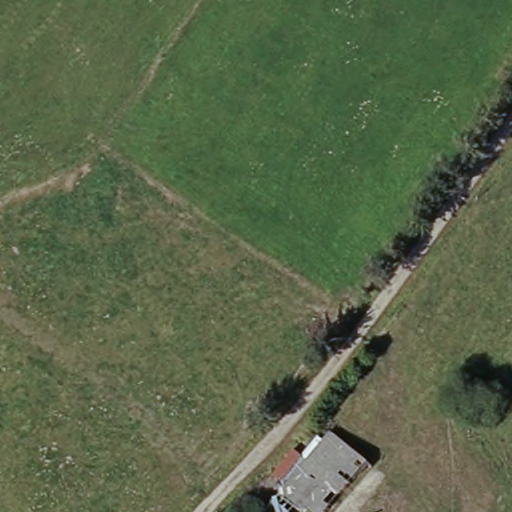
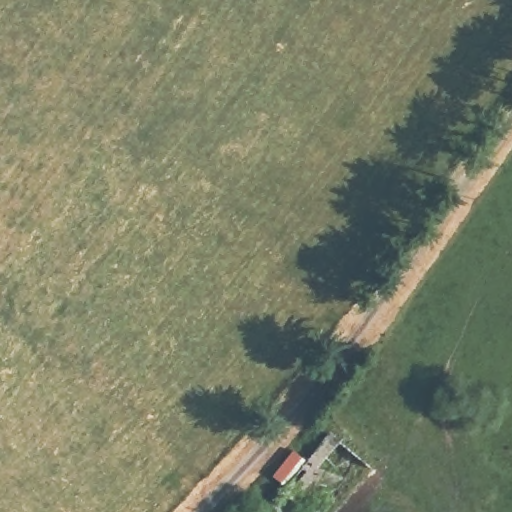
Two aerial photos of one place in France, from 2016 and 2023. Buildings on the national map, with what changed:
unchanged [(369,468),(348,497),(336,512),(263,512),(262,511),(326,428),(369,468)]
unchanged [(221,512),(239,491),(262,511),(263,512),(221,512)]

